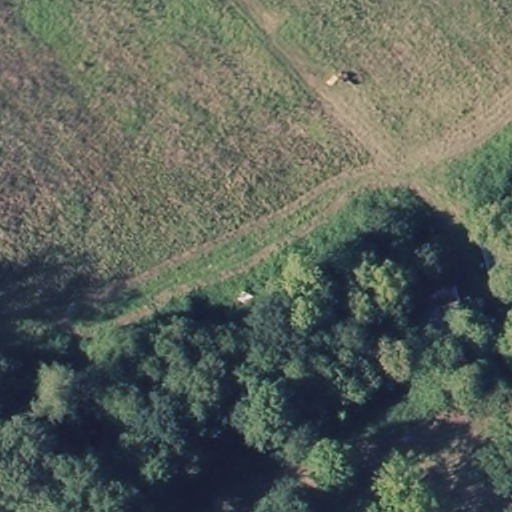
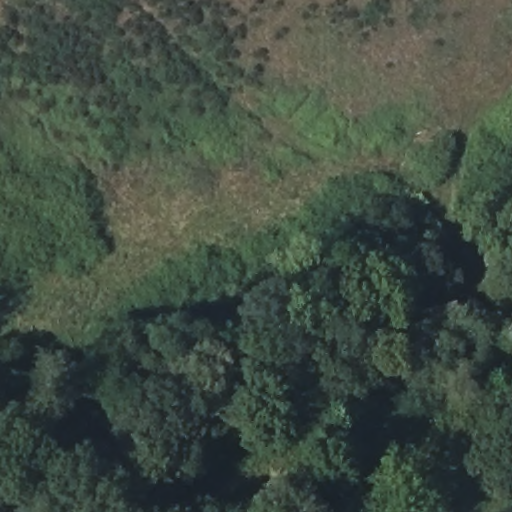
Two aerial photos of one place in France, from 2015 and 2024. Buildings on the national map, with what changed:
unchanged [(409,289),(453,277),(462,305),(456,307),(472,349),(429,360),(409,289)]

